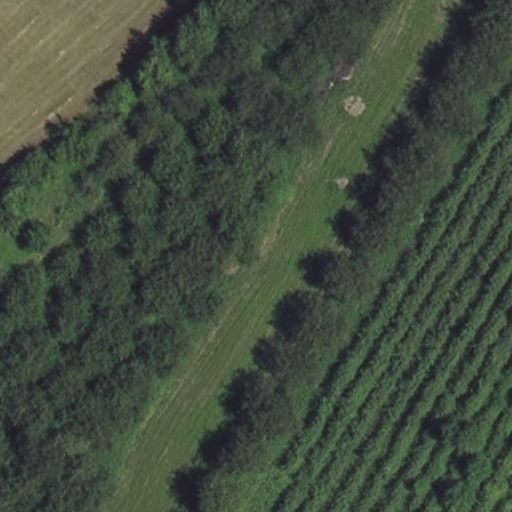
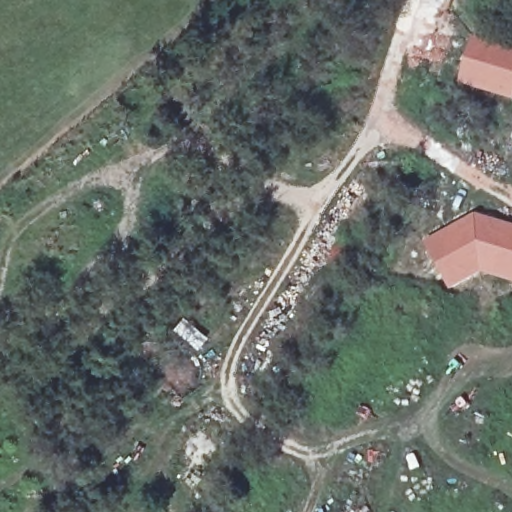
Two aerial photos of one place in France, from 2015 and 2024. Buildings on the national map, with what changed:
new [(474,35),(512,46),(512,101),(458,84),(474,35)]
new [(482,267),(449,285),(426,243),(475,217),(512,229),(512,277),(482,267)]

